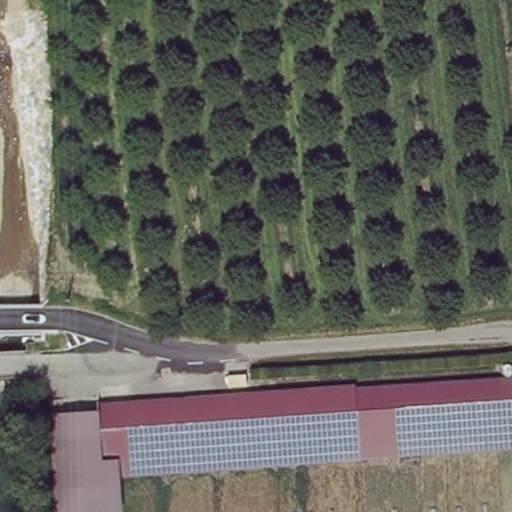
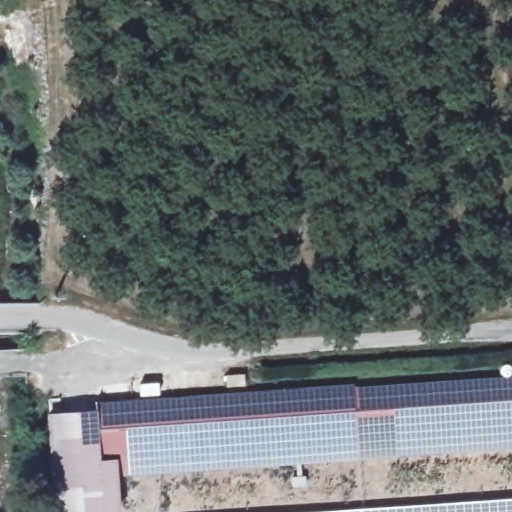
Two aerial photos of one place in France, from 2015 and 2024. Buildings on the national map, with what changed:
unchanged [(344,399),(512,383),(512,433),(344,448),(344,399)]
unchanged [(111,471),(115,512),(52,512),(46,433),(88,431),(87,423),(344,399),(344,448),(111,471)]
new [(321,512),(512,499),(512,512),(321,512)]

